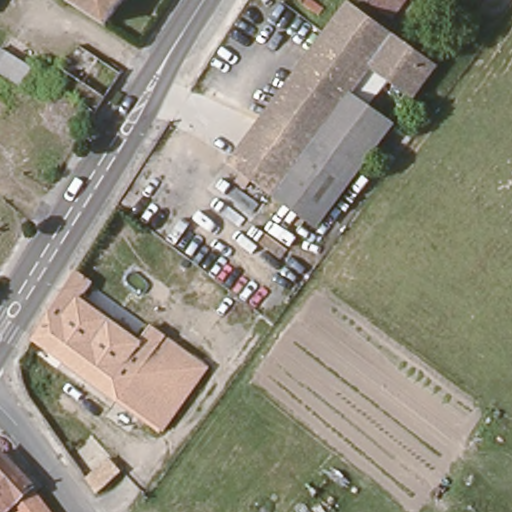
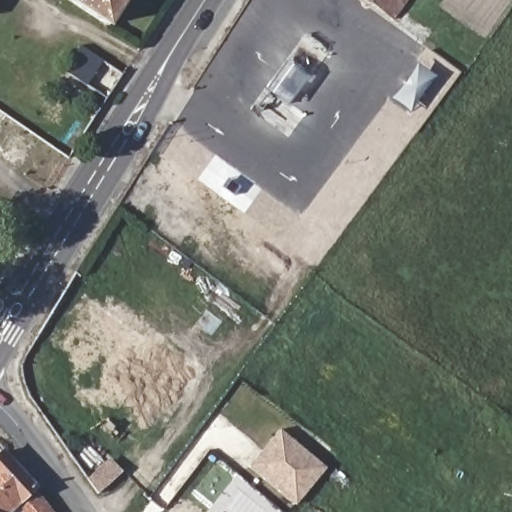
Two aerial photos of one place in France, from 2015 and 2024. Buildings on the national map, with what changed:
unchanged [(72,0),(125,0),(109,25),(72,0)]
demolished [(349,0),(441,64),(414,98),(371,67),(353,92),(397,123),(318,227),(226,165),(345,0),(349,0)]
unchanged [(371,0),(410,0),(395,18),(371,0)]
demolished [(36,64),(23,89),(0,73),(0,43),(36,64)]
unchanged [(99,117),(55,88),(82,47),(125,74),(99,117)]
demolished [(77,273),(205,369),(160,431),(37,340),(77,273)]
new [(296,505),(251,465),(280,430),(326,468),(296,505)]
unchanged [(27,494),(42,512),(18,512),(15,506),(8,512),(0,512),(0,455),(3,452),(32,489),(27,494)]
unchanged [(85,478),(110,459),(120,471),(95,493),(85,478)]

